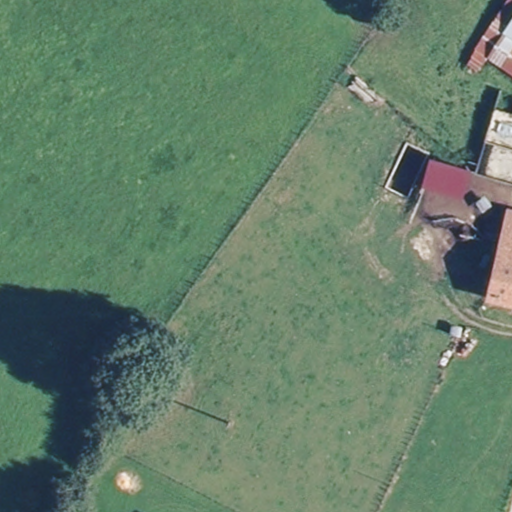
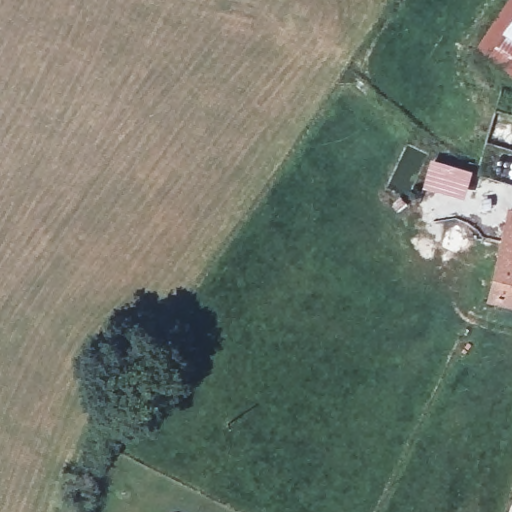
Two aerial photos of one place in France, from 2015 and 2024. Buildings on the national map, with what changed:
unchanged [(477,60),(493,38),(512,10),(512,81),(477,60)]
unchanged [(473,170),(465,199),(423,186),(431,158),(473,170)]
unchanged [(496,297),(510,229),(512,218),(512,301),(496,297)]

